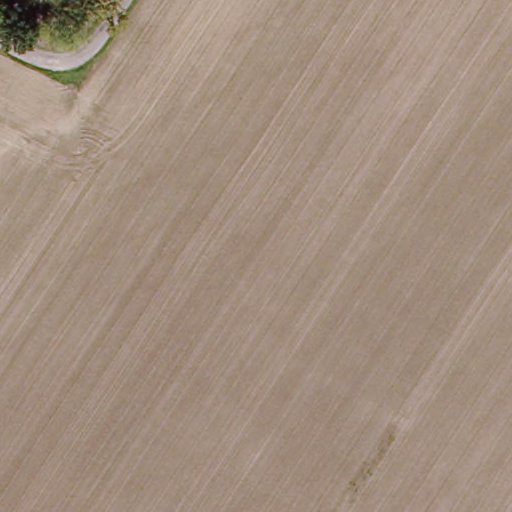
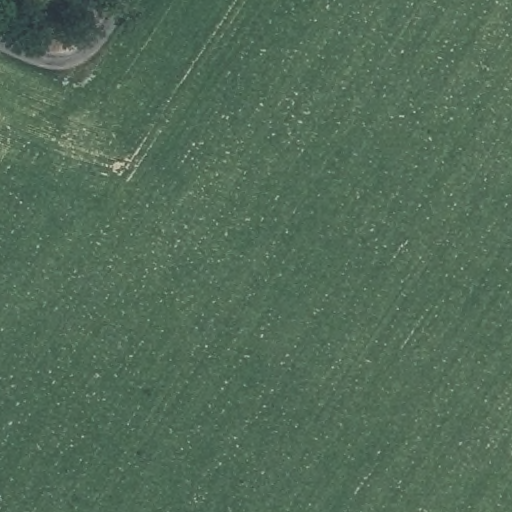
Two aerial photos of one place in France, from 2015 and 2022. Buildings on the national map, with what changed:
[]

